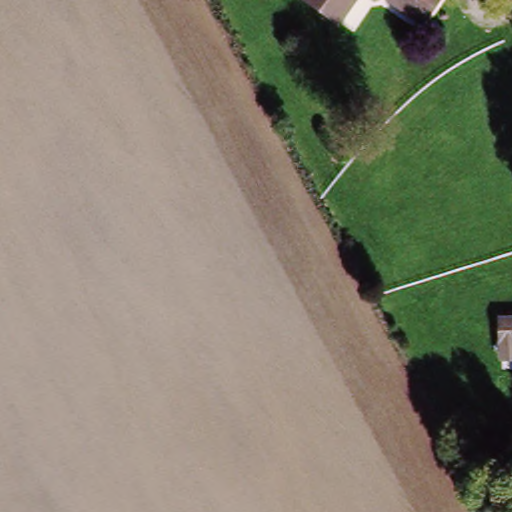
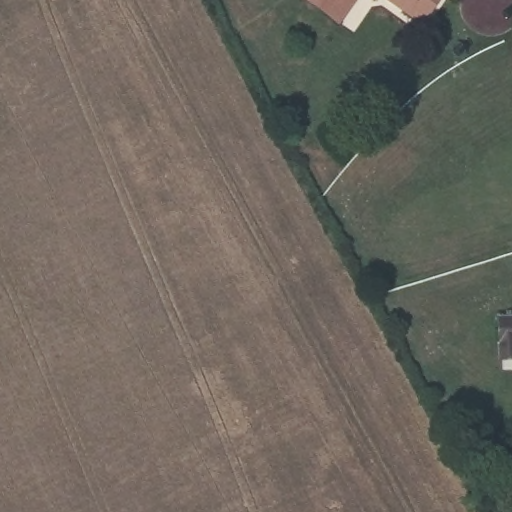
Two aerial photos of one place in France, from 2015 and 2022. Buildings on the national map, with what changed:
unchanged [(312,10),(319,0),(358,0),(343,28),(312,10)]
unchanged [(441,0),(422,32),(375,0),(441,0)]
unchanged [(494,350),(497,312),(512,314),(512,348),(494,350)]

